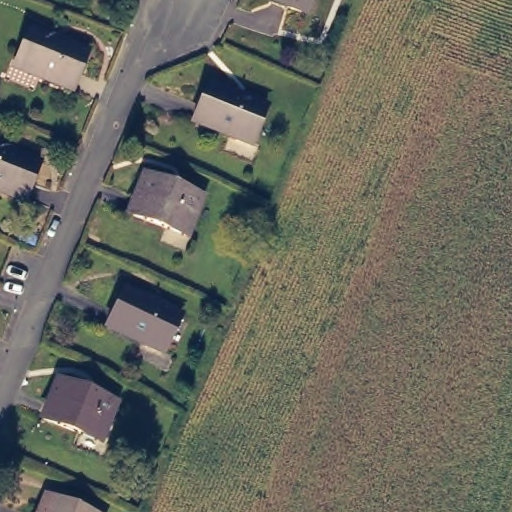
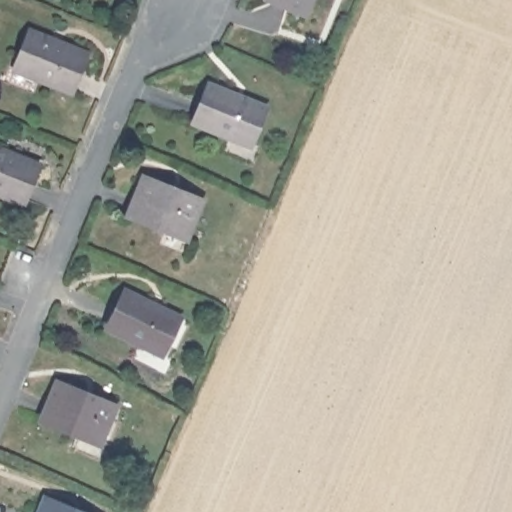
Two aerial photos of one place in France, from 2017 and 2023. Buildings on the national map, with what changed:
unchanged [(295,0),(312,0),(310,5),(295,0)]
unchanged [(21,72),(26,58),(8,52),(16,29),(35,36),(51,42),(54,33),(77,42),(75,50),(92,57),(78,93),(21,72)]
unchanged [(254,139),(196,118),(210,79),(267,102),(254,139)]
unchanged [(0,186),(0,143),(39,157),(26,195),(0,186)]
unchanged [(184,239),(125,216),(139,180),(198,203),(184,239)]
unchanged [(161,347),(105,324),(121,286),(176,310),(161,347)]
unchanged [(103,436),(48,414),(63,378),(118,399),(103,436)]
unchanged [(40,495),(83,512),(33,512),(40,495)]

